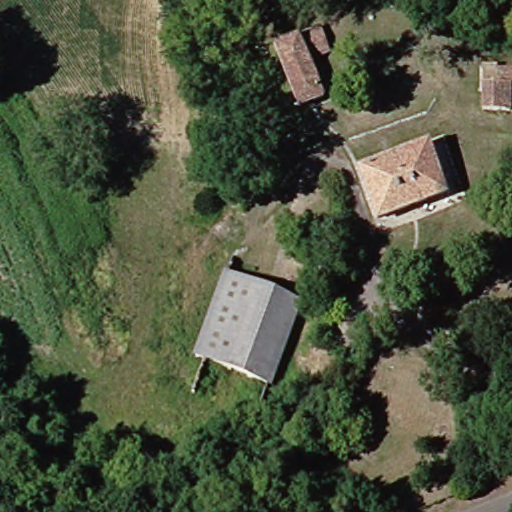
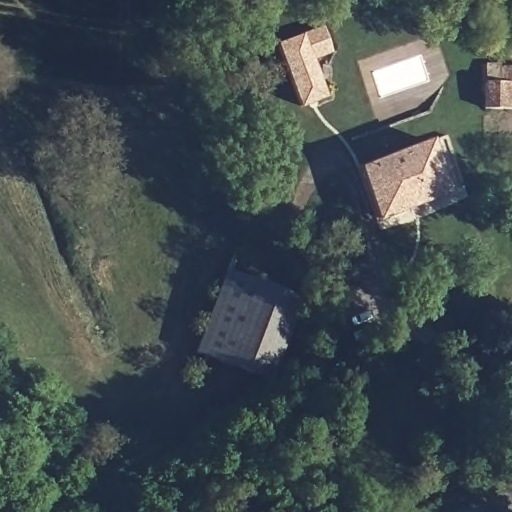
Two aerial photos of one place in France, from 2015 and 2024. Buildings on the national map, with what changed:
unchanged [(315,33),(325,56),(305,65),(319,104),(296,112),(270,51),(315,33)]
unchanged [(483,120),(483,109),(480,64),(498,63),(499,69),(512,69),(512,110),(508,110),(509,121),(483,120)]
unchanged [(429,144),(446,192),(379,215),(362,166),(429,144)]
unchanged [(205,364),(196,359),(225,281),(298,309),(268,388),(205,364)]

